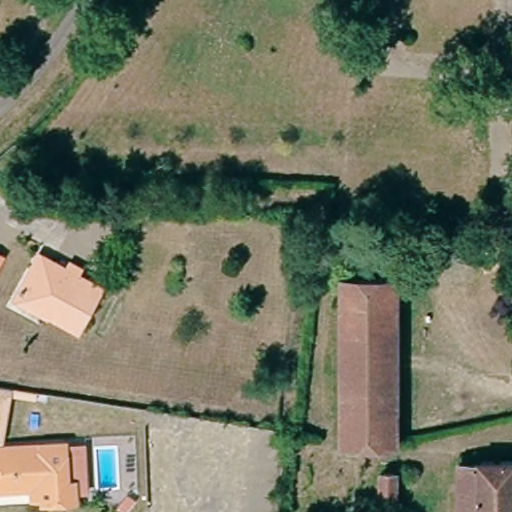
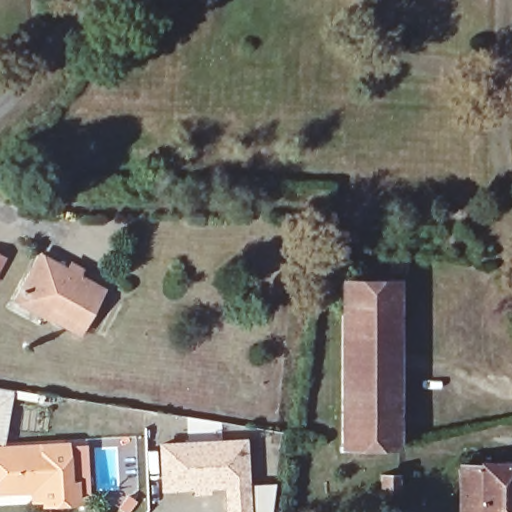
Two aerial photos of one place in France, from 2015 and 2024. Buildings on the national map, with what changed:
unchanged [(5,256),(0,265),(0,254),(5,256)]
unchanged [(49,314),(17,297),(40,254),(101,288),(84,321),(79,330),(49,314)]
unchanged [(398,445),(342,444),(342,278),(398,279),(398,445)]
unchanged [(2,437),(0,437),(0,381),(10,383),(2,437)]
unchanged [(33,483),(0,485),(0,443),(65,439),(68,477),(74,477),(75,495),(43,497),(43,493),(34,493),(33,483)]
new [(246,440),(247,483),(164,486),(163,443),(246,440)]
unchanged [(478,464),(479,460),(512,461),(512,512),(459,512),(460,463),(478,464)]
unchanged [(397,512),(380,512),(380,474),(397,474),(397,512)]
new [(210,489),(211,494),(193,495),(192,490),(165,491),(164,486),(247,483),(276,482),(272,512),(225,512),(225,488),(210,489)]

